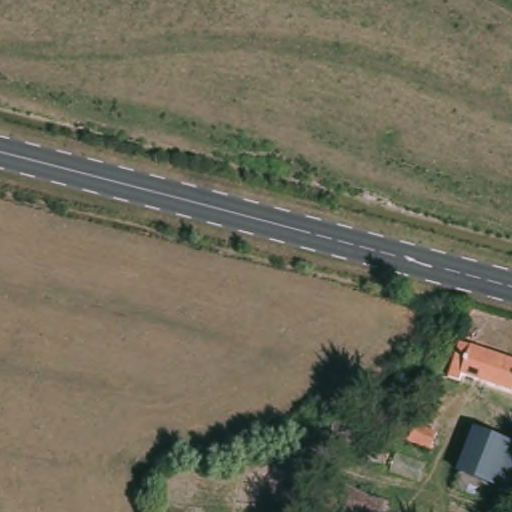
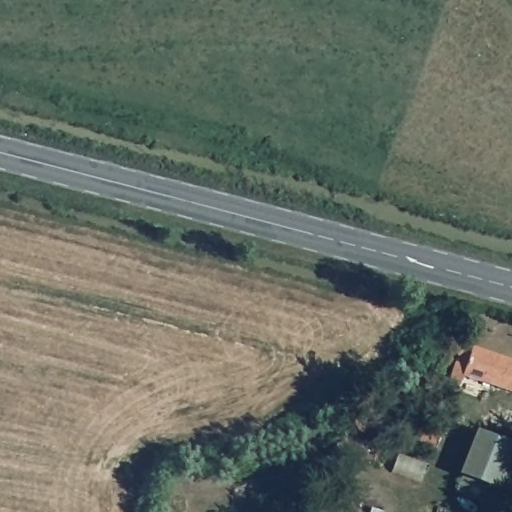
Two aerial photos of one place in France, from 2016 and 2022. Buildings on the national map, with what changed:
unchanged [(512,383),(464,366),(463,375),(451,370),(461,340),(512,356),(512,383)]
unchanged [(421,422),(443,427),(438,442),(416,435),(421,422)]
unchanged [(512,497),(491,492),(486,506),(457,496),(463,483),(454,478),(473,433),(512,450),(512,497)]

